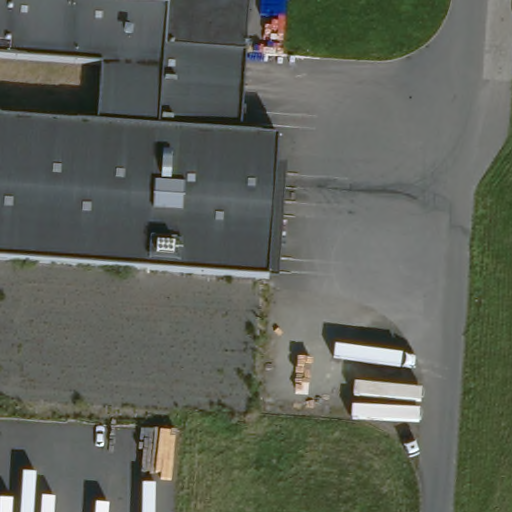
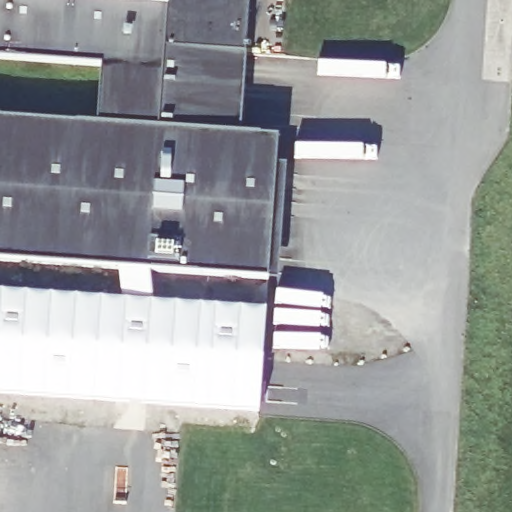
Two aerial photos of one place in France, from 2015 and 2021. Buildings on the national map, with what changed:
unchanged [(284,141),(271,278),(0,259),(0,117),(100,125),(104,67),(0,60),(0,0),(250,0),(240,137),(284,141)]
new [(120,268),(149,270),(154,300),(268,309),(261,413),(0,393),(0,289),(123,298),(120,268)]

